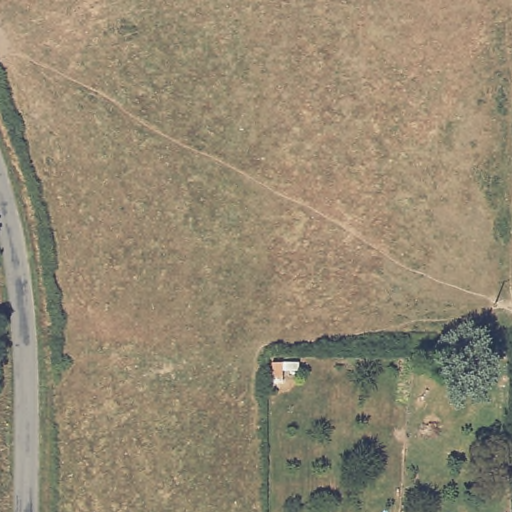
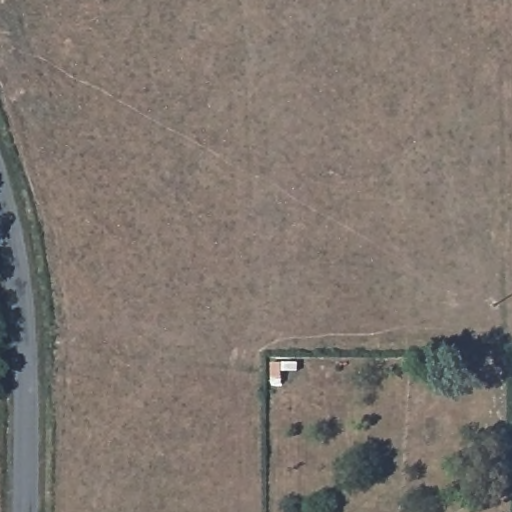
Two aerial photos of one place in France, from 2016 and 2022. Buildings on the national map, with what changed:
unchanged [(282,363),(282,377),(272,377),(272,363),(282,363)]

